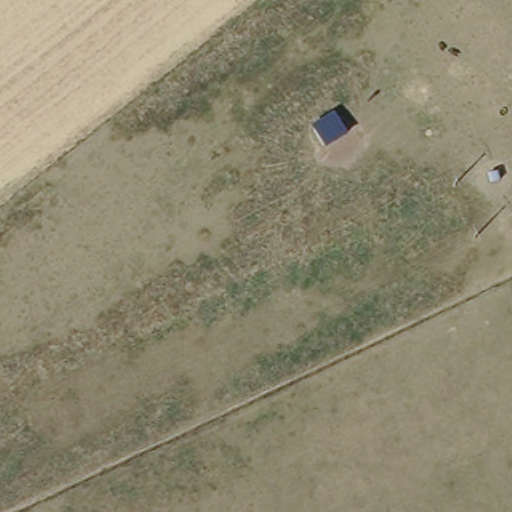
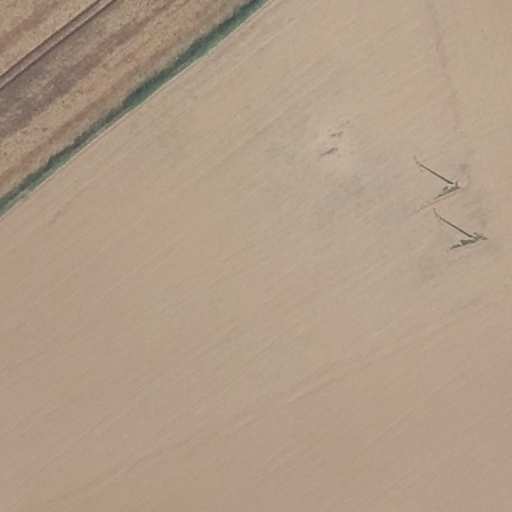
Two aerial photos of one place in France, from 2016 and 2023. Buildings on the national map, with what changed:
unchanged [(350,135),(327,148),(309,121),(330,107),(350,135)]

